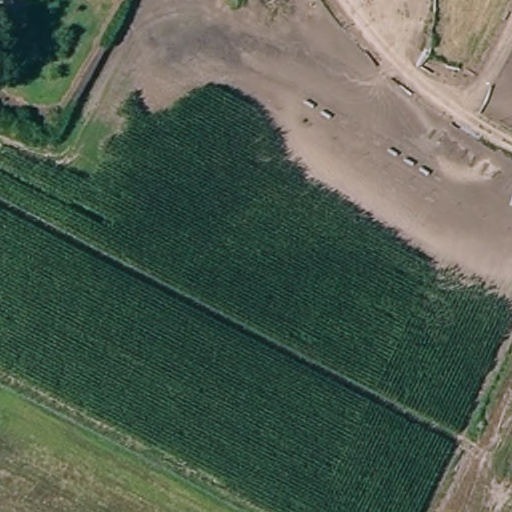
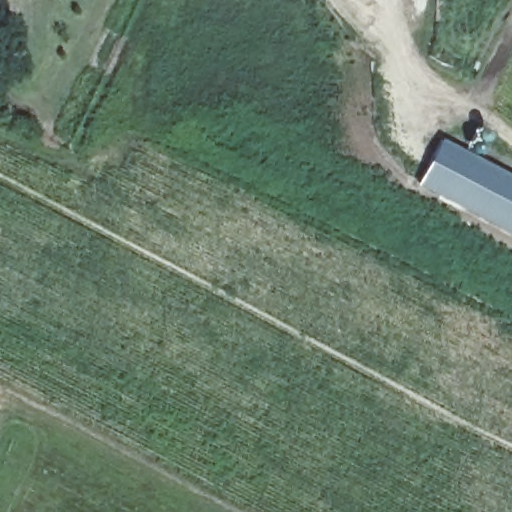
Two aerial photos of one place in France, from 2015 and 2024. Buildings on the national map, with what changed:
new [(442,137),(512,174),(512,236),(417,186),(442,137)]

